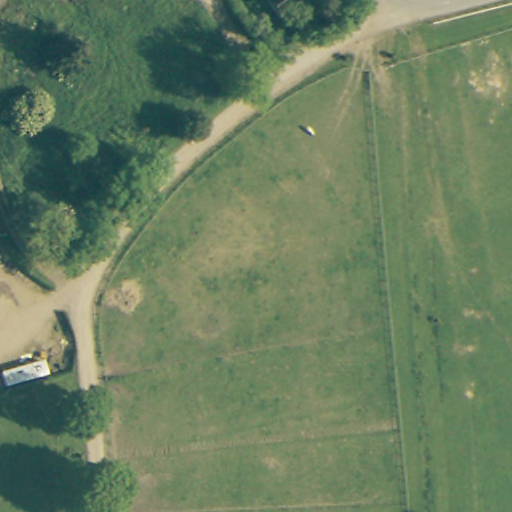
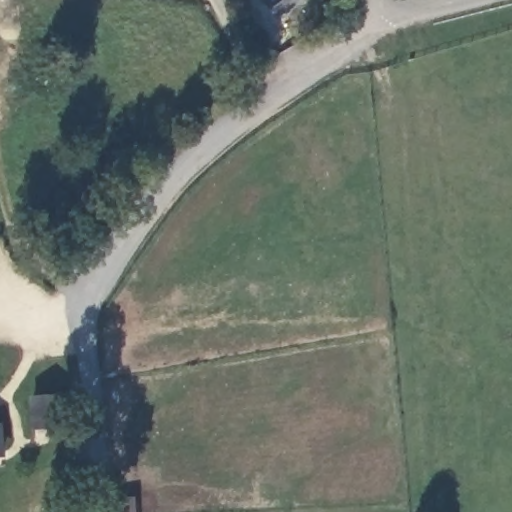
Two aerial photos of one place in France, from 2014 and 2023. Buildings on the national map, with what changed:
unchanged [(45,2),(50,14),(33,25),(26,11),(45,2)]

